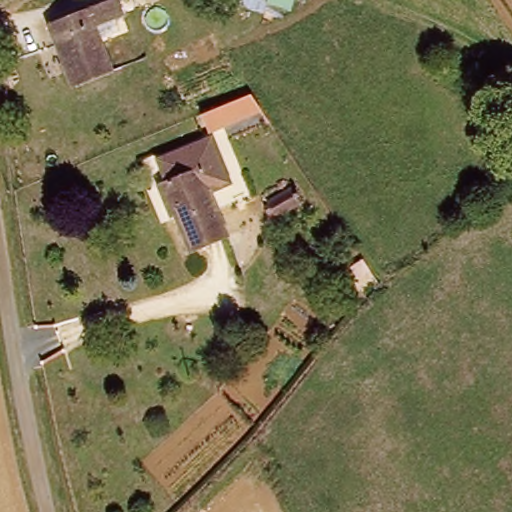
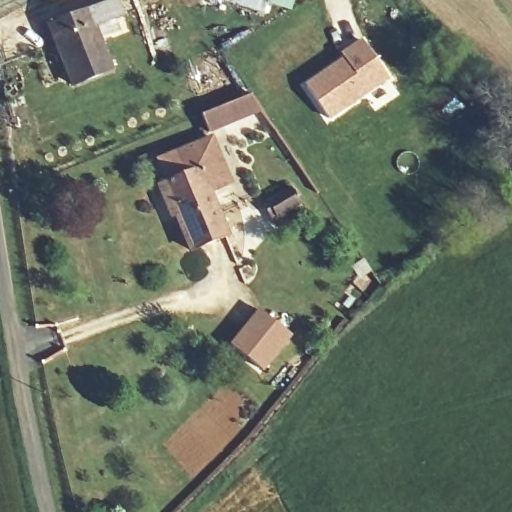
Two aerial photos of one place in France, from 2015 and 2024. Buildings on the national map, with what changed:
unchanged [(67,81),(44,21),(101,0),(121,0),(126,12),(95,25),(111,64),(67,81)]
new [(330,119),(305,84),(343,58),(340,54),(361,39),(390,79),(330,119)]
unchanged [(199,115),(250,95),(262,112),(212,133),(207,135),(199,115)]
unchanged [(186,244),(171,202),(165,204),(157,181),(167,177),(158,153),(212,133),(228,179),(205,188),(220,230),(186,244)]
unchanged [(263,202),(287,185),(299,202),(277,218),(263,202)]
new [(265,370),(232,345),(260,310),(292,335),(265,370)]

